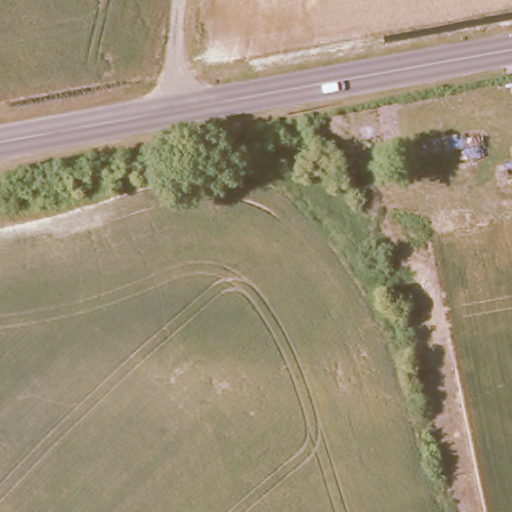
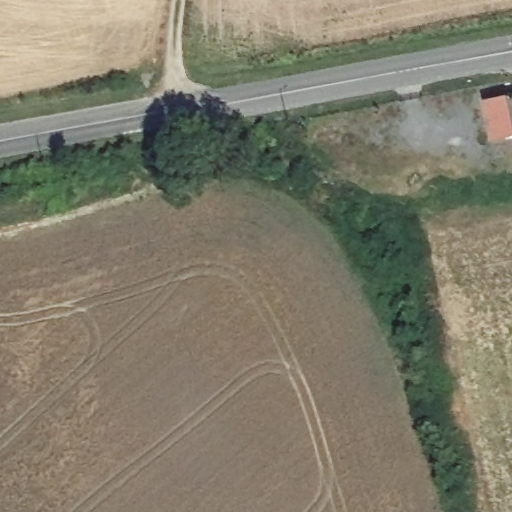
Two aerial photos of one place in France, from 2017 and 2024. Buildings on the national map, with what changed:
new [(512,131),(491,136),(483,95),(512,90),(512,131)]

